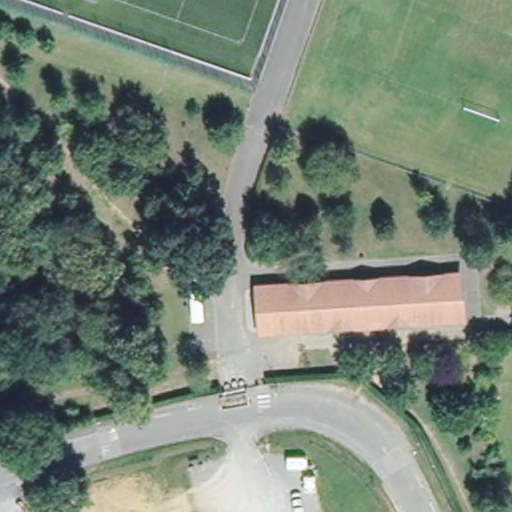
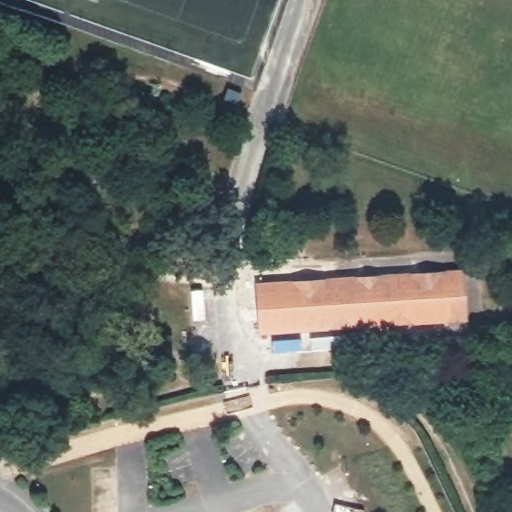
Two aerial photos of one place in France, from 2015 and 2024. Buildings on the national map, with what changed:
unchanged [(275,278),(296,278),(318,277),(353,276),(381,274),(412,273),(441,272),(460,270),(462,319),(408,321),(385,322),(352,323),(327,324),(276,326),(275,278)]
unchanged [(254,334),(252,277),(275,278),(276,326),(277,334),(254,334)]

